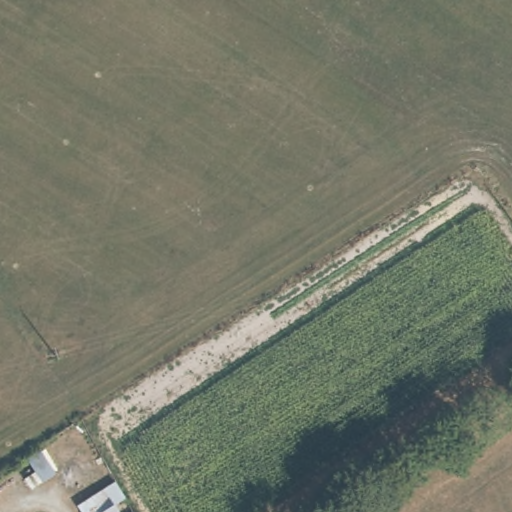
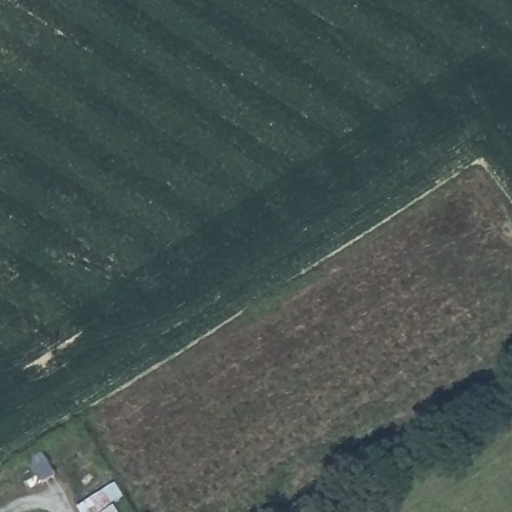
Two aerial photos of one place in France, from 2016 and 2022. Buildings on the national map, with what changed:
unchanged [(56,475),(30,492),(21,480),(32,471),(26,460),(40,451),(56,475)]
unchanged [(112,487),(121,502),(111,510),(113,512),(76,512),(112,487)]

